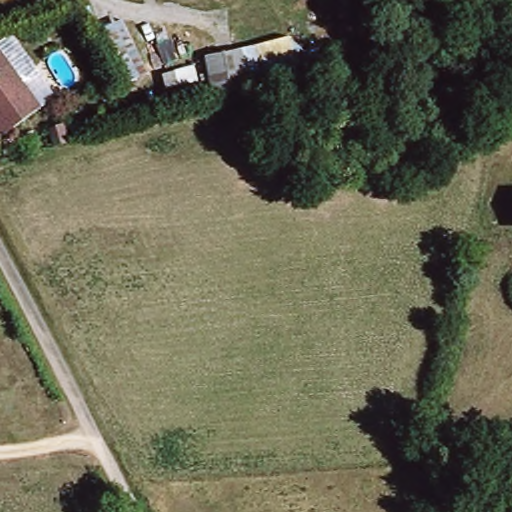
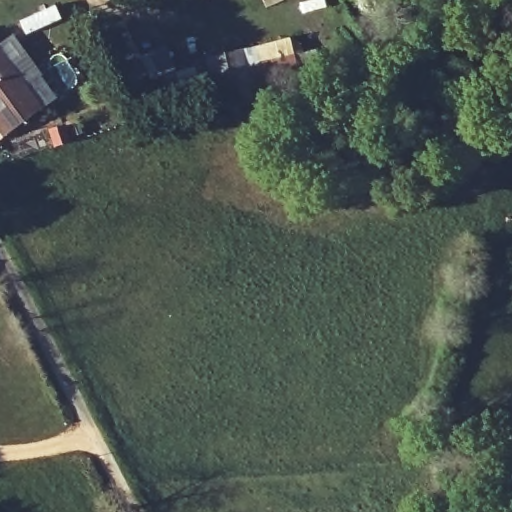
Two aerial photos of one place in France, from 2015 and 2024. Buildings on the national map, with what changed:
unchanged [(251,45),(257,63),(291,53),(298,73),(263,84),(226,95),(215,98),(203,59),(251,45)]
unchanged [(0,49),(43,106),(9,130),(0,118),(0,49)]
unchanged [(0,118),(9,130),(0,138),(0,118)]

